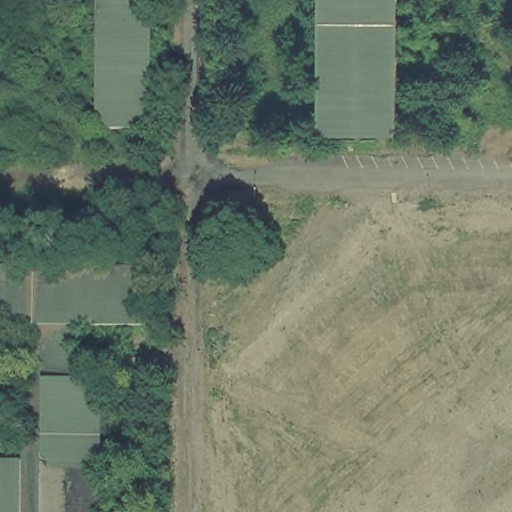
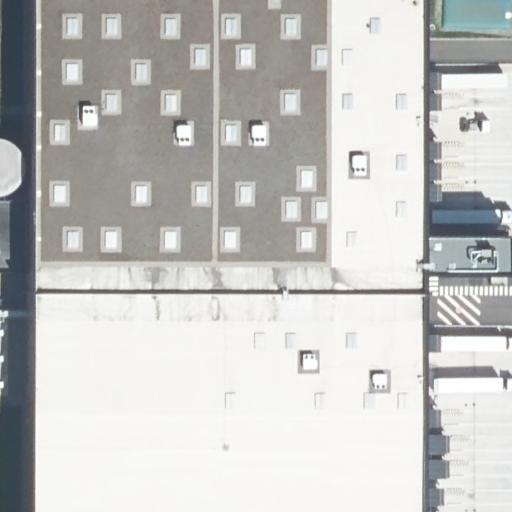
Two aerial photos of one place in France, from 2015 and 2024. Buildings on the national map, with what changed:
new [(5,136),(10,138),(14,141),(18,144),(21,148),(23,153),(25,157),(25,161),(26,161),(26,0),(421,0),(421,72),(435,72),(435,90),(421,90),(421,93),(435,93),(435,111),(421,111),(421,141),(435,141),(435,159),(421,159),(421,162),(435,162),(435,180),(421,180),(421,183),(435,183),(435,202),(421,201),(421,225),(508,226),(508,276),(421,277),(421,334),(435,334),(435,354),(421,354),(421,409),(435,409),(435,429),(421,429),(421,434),(443,434),(443,454),(420,454),(420,459),(443,459),(443,479),(420,479),(420,484),(437,484),(437,502),(420,502),(420,512),(26,512),(26,272),(0,272),(0,200),(26,200),(26,172),(25,172),(24,177),(22,181),(20,186),(16,189),(12,192),(7,195),(3,196),(0,197),(0,135),(1,135),(5,136)]
demolished [(156,128),(98,130),(98,0),(156,0),(156,128)]
demolished [(403,132),(324,129),(323,0),(405,0),(403,132)]
demolished [(75,375),(106,378),(107,512),(0,512),(0,434),(15,435),(17,327),(0,327),(0,264),(148,265),(153,323),(76,324),(75,375)]

